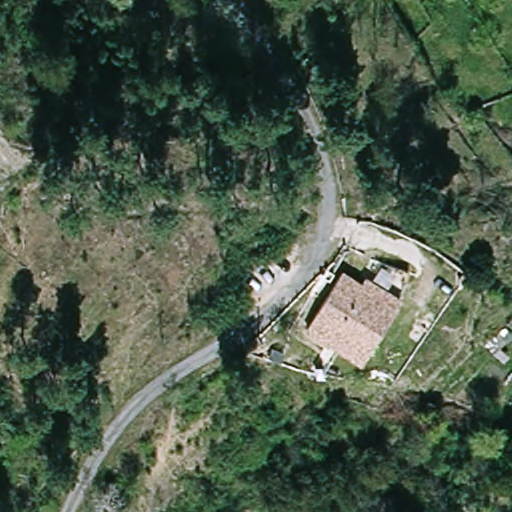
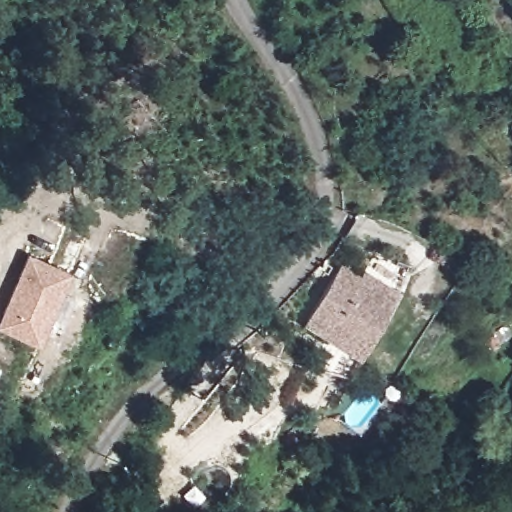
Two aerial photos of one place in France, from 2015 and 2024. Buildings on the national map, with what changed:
new [(38,346),(0,330),(0,317),(28,253),(70,271),(38,346)]
unchanged [(363,279),(368,274),(399,300),(349,357),(302,315),(347,264),(363,279)]

